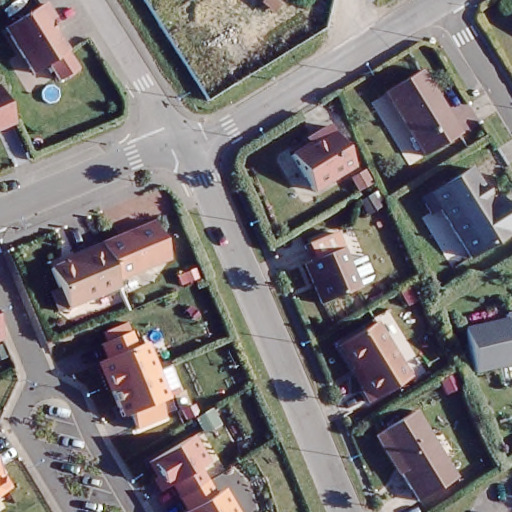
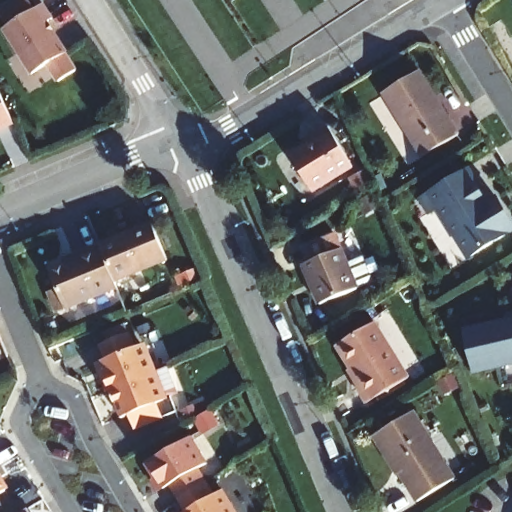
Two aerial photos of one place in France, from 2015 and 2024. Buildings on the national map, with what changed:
unchanged [(38,10),(46,24),(41,27),(58,59),(57,60),(66,77),(46,88),(36,71),(23,78),(0,35),(0,30),(38,10)]
unchanged [(418,68),(457,132),(421,155),(381,90),(418,68)]
unchanged [(8,125),(0,128),(0,106),(8,125)]
unchanged [(312,138),(309,133),(324,124),(349,163),(306,190),(285,154),(312,138)]
unchanged [(358,166),(364,176),(353,184),(346,173),(358,166)]
unchanged [(491,215),(501,209),(512,227),(512,228),(464,257),(434,208),(424,214),(415,199),(464,169),(491,215)]
unchanged [(166,258),(113,280),(105,259),(102,253),(98,243),(151,221),(166,258)]
unchanged [(328,232),(359,285),(324,305),(301,269),(309,264),(299,248),(328,232)]
unchanged [(50,290),(56,288),(48,268),(73,258),(71,254),(98,243),(102,253),(105,259),(113,280),(116,286),(64,308),(58,310),(50,290)]
unchanged [(486,248),(493,259),(483,265),(476,254),(486,248)]
unchanged [(504,313),(512,311),(512,362),(473,372),(462,330),(506,319),(504,313)]
unchanged [(376,320),(410,376),(371,400),(361,385),(366,383),(341,342),(376,320)]
unchanged [(99,363),(106,360),(100,345),(128,334),(134,348),(141,345),(153,373),(110,391),(99,363)]
unchanged [(164,401),(156,404),(163,419),(136,430),(129,415),(121,418),(110,391),(153,373),(164,401)]
unchanged [(415,409),(458,477),(419,501),(376,433),(415,409)]
unchanged [(171,486),(163,490),(148,463),(188,440),(203,466),(196,470),(204,484),(191,492),(178,499),(171,486)]
unchanged [(0,477),(0,475),(1,477),(0,477)]
unchanged [(5,491),(0,494),(0,483),(5,491)]
unchanged [(219,493),(231,512),(186,512),(178,499),(191,492),(204,484),(212,497),(219,493)]

